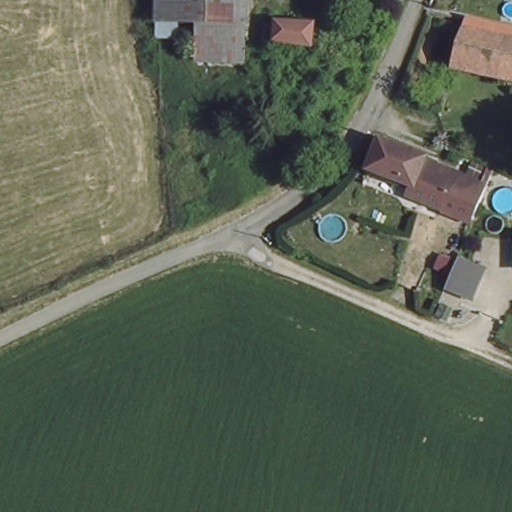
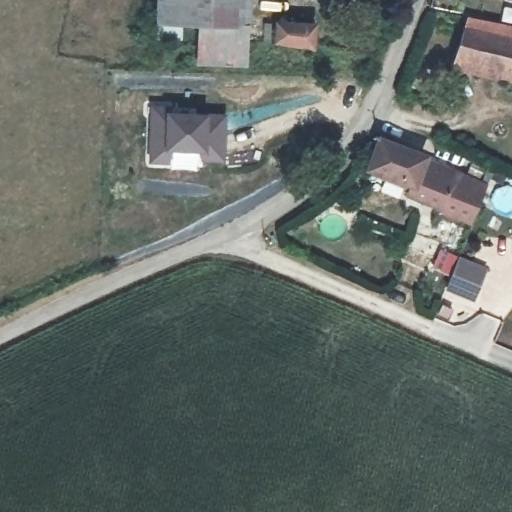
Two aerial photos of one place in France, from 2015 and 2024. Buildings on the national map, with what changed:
unchanged [(202,26),(182,25),(182,0),(256,0),(255,53),(255,71),(212,70),(212,68),(214,27),(202,26)]
unchanged [(280,39),(282,17),(314,18),(314,40),(280,39)]
unchanged [(502,83),(504,74),(444,60),(452,31),(512,42),(512,86),(502,83)]
new [(198,159),(198,152),(168,151),(169,162),(147,161),(150,103),(170,103),(166,111),(227,114),(225,161),(198,159)]
unchanged [(400,173),(379,165),(378,165),(357,157),(368,129),(423,147),(422,151),(472,171),(464,197),(462,203),(397,182),(400,173)]
unchanged [(490,264),(479,292),(452,282),(455,273),(462,253),(490,264)]

